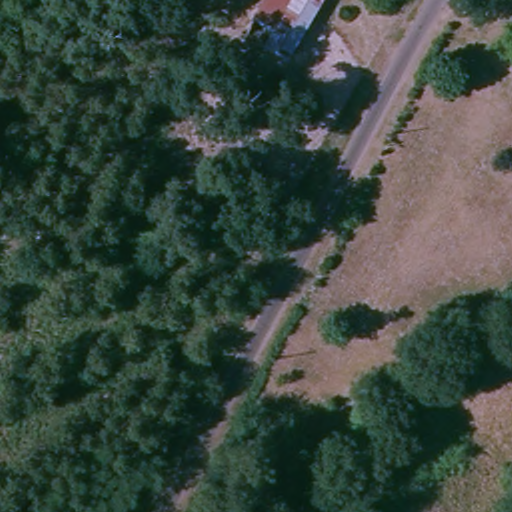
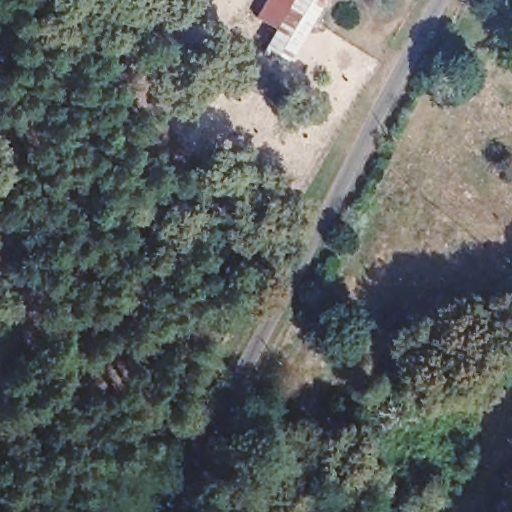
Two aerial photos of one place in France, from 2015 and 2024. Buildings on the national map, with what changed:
unchanged [(272,0),(289,0),(269,35),(256,29),(272,0)]
unchanged [(324,0),(299,51),(269,35),(289,0),(324,0)]

